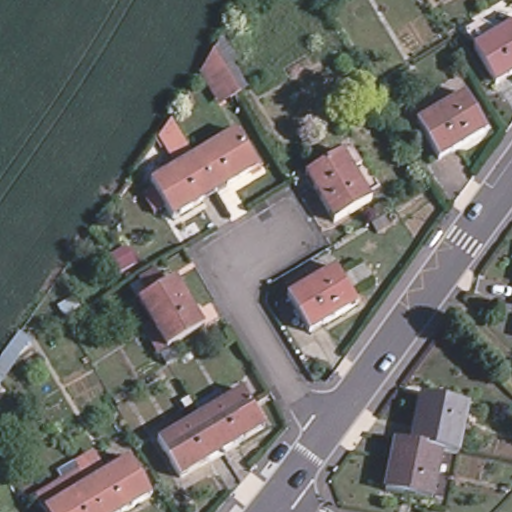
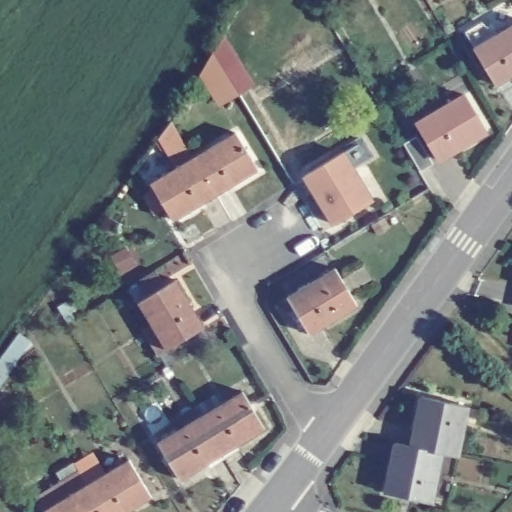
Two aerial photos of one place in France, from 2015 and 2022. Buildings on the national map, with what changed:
unchanged [(512,29),(512,79),(495,89),(475,51),(512,29)]
unchanged [(220,107),(201,76),(214,54),(222,40),(238,65),(225,73),(239,96),(220,107)]
unchanged [(419,126),(467,97),(488,134),(440,162),(419,126)]
unchanged [(231,134),(253,171),(210,197),(188,161),(231,134)]
unchanged [(334,227),(305,179),(342,159),(351,154),(361,172),(353,177),(370,205),(334,227)]
unchanged [(139,202),(151,194),(146,187),(188,161),(210,197),(168,223),(163,214),(151,221),(139,202)]
unchanged [(152,296),(143,280),(158,271),(167,287),(177,281),(205,330),(168,352),(139,302),(152,296)]
unchanged [(336,271),(358,307),(310,337),(288,301),(336,271)]
unchanged [(168,368),(162,360),(176,351),(181,360),(168,368)]
unchanged [(183,431),(177,422),(195,412),(218,397),(223,407),(244,393),(265,430),(222,457),(182,481),(160,445),(183,431)]
unchanged [(422,400),(468,410),(460,458),(442,455),(413,449),(422,400)]
unchanged [(413,449),(442,455),(431,503),(386,494),(396,446),(413,449)]
unchanged [(125,512),(43,512),(42,512),(33,497),(56,483),(57,483),(75,473),(71,469),(88,458),(91,463),(100,477),(127,462),(149,497),(125,512)]

